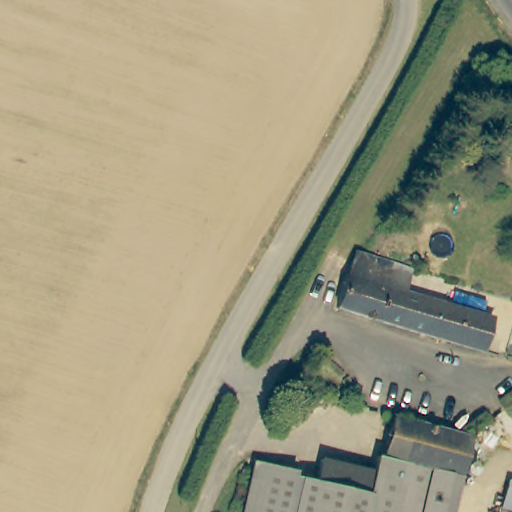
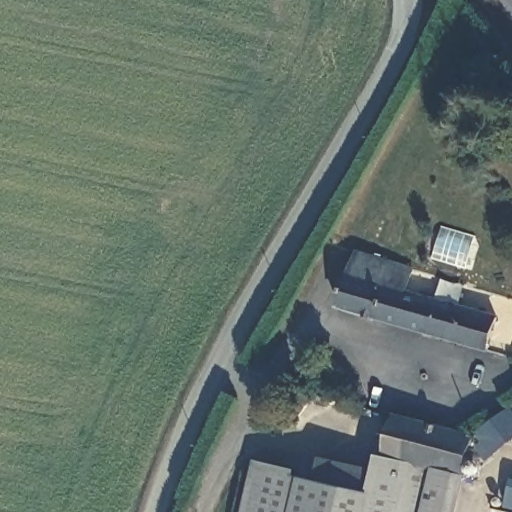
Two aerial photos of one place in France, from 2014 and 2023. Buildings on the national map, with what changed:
unchanged [(341,306),(347,284),(357,252),(364,254),(414,269),(410,292),(497,318),(487,348),(341,306)]
unchanged [(294,470),(294,474),(315,479),(320,456),(371,466),(374,452),(382,454),(390,413),(467,428),(451,512),(242,512),(252,462),(294,470)]
unchanged [(505,505),(512,477),(512,507),(505,505)]

